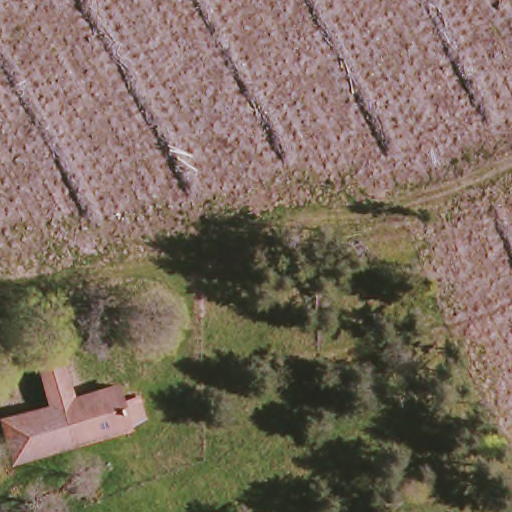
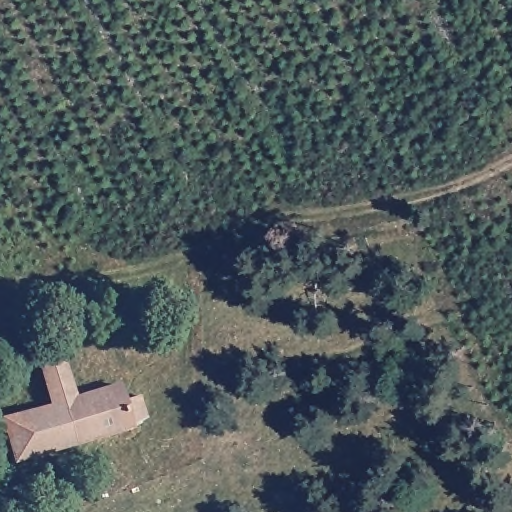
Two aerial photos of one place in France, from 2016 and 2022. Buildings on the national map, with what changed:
unchanged [(1,421),(48,407),(36,364),(65,355),(77,397),(120,383),(125,398),(141,398),(148,422),(133,425),(137,434),(13,468),(1,421)]

